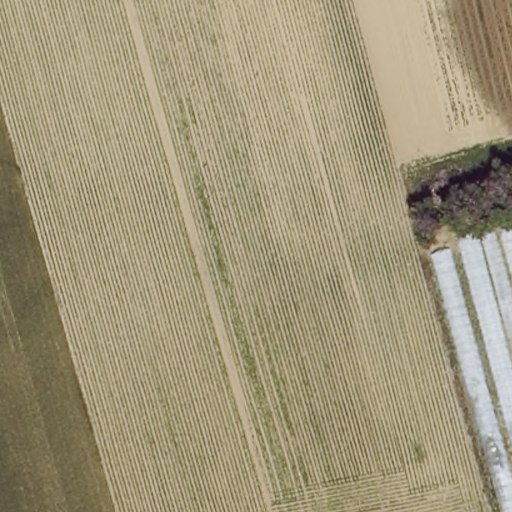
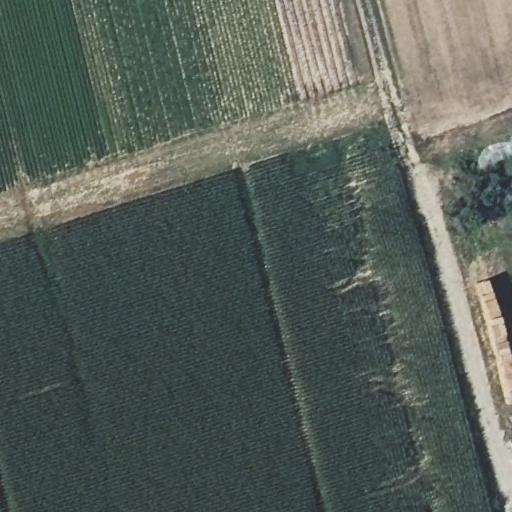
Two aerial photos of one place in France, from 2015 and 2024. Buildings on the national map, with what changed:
demolished [(512,220),(512,512),(496,512),(425,247),(512,220)]

